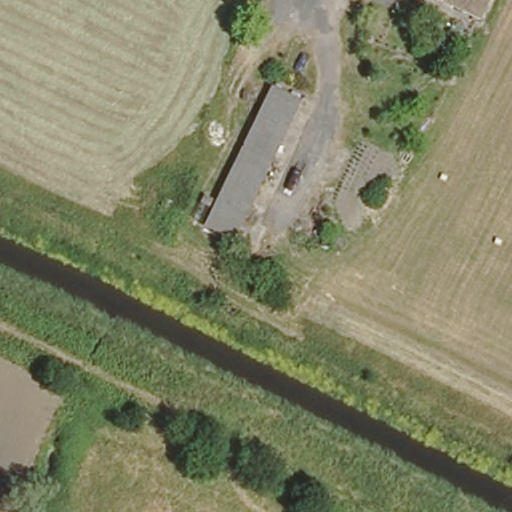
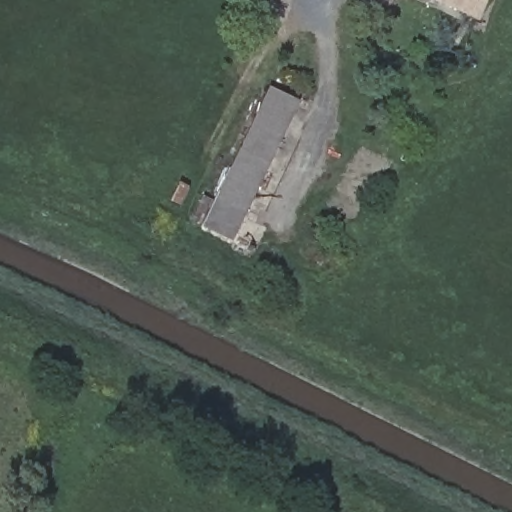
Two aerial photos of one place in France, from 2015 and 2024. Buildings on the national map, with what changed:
unchanged [(463,9),(445,0),(489,0),(481,17),(463,9)]
unchanged [(301,103),(234,241),(201,227),(269,86),(301,103)]

